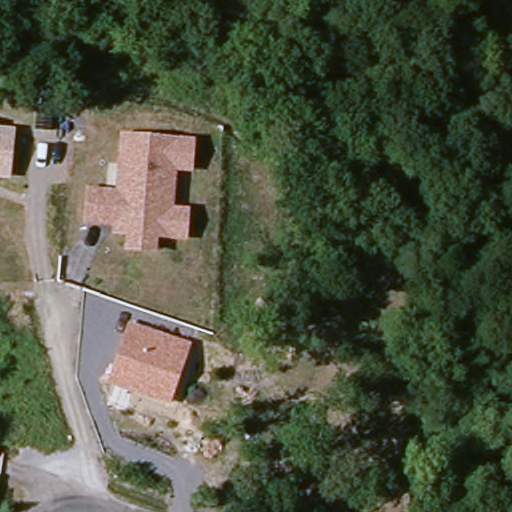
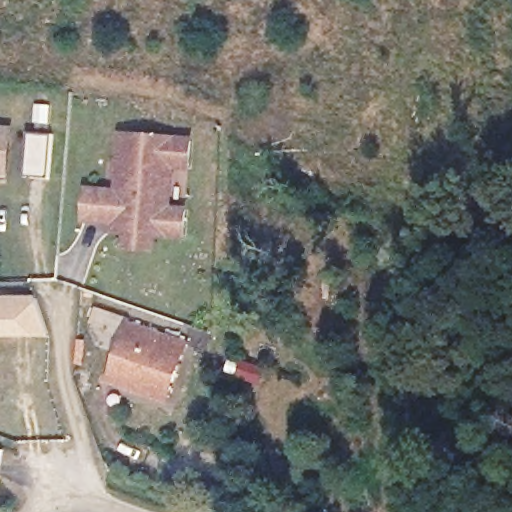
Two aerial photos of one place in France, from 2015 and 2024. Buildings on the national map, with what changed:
unchanged [(50,129),(34,128),(37,103),(52,105),(50,129)]
unchanged [(0,175),(0,129),(12,130),(7,175),(0,175)]
unchanged [(196,136),(195,175),(178,172),(177,205),(192,206),(189,241),(157,240),(156,255),(121,251),(122,236),(111,234),(112,223),(84,220),(86,185),(114,187),(120,132),(196,136)]
new [(15,332),(0,333),(0,298),(14,297),(15,332)]
new [(36,297),(50,332),(15,332),(14,297),(36,297)]
unchanged [(170,404),(110,385),(128,322),(192,344),(170,404)]

